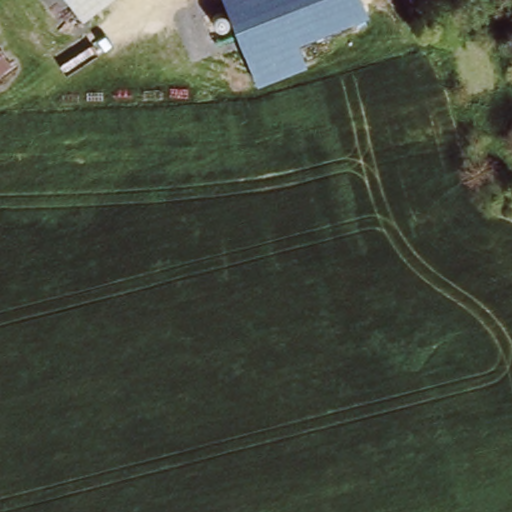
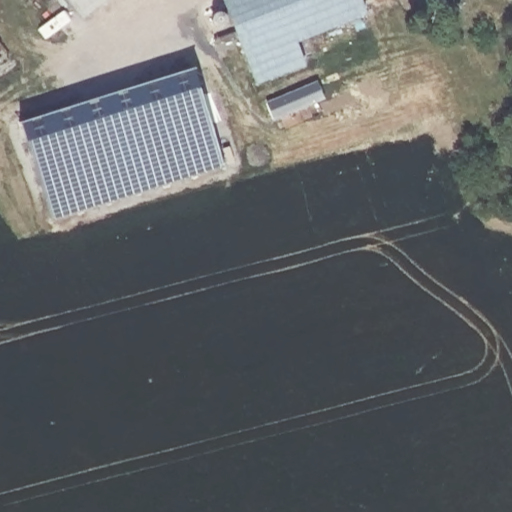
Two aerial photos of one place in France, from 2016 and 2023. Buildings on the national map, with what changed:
unchanged [(67,0),(109,0),(82,20),(67,0)]
unchanged [(297,44),(305,65),(255,84),(221,0),(359,0),(366,16),(297,44)]
unchanged [(0,71),(0,48),(12,61),(0,71)]
new [(226,168),(52,222),(18,124),(194,69),(226,168)]

